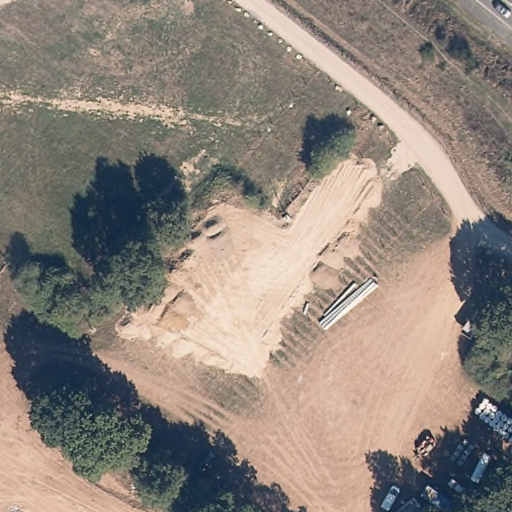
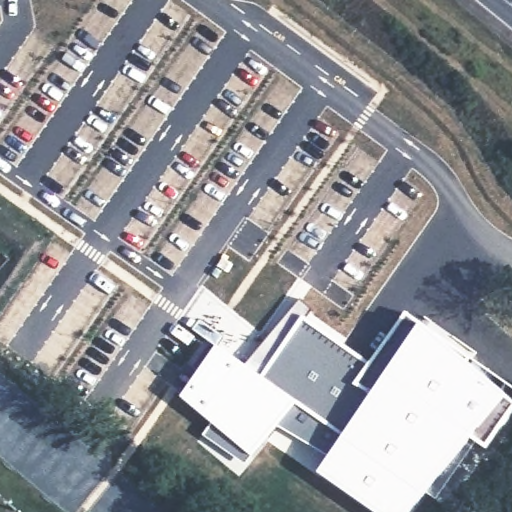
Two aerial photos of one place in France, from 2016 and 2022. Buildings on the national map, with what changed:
new [(245,366),(300,300),(311,308),(305,318),(372,366),(407,316),(423,327),(507,397),(512,402),(512,416),(488,449),(479,442),(437,499),(429,490),(412,512),(373,512),(319,475),(332,455),(280,423),(252,457),(247,465),(204,435),(214,425),(181,399),(217,346),(245,366)]

